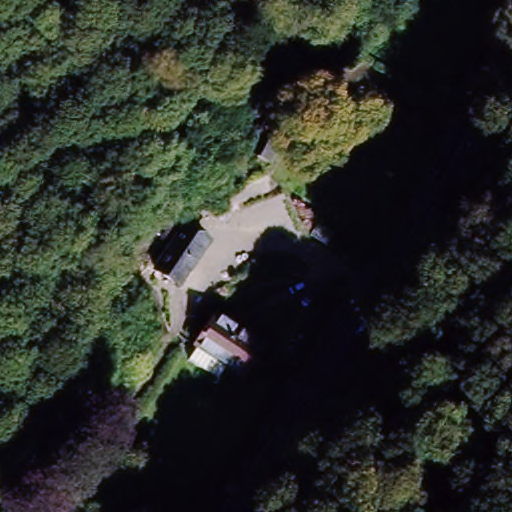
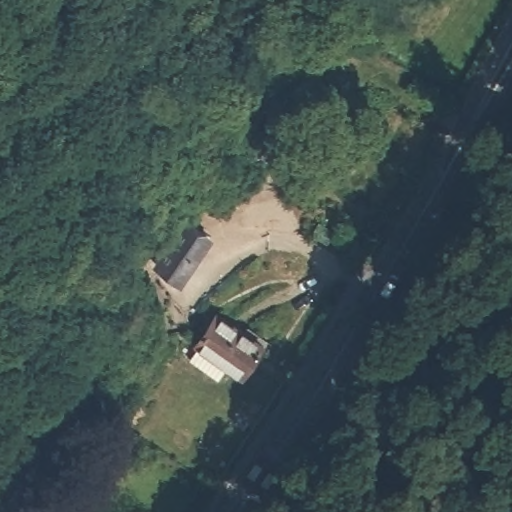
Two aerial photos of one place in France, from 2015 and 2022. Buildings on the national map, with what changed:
unchanged [(245,150),(265,121),(286,135),(266,165),(245,150)]
unchanged [(182,231),(209,246),(183,287),(157,271),(182,231)]
unchanged [(193,349),(212,321),(255,351),(236,378),(193,349)]

